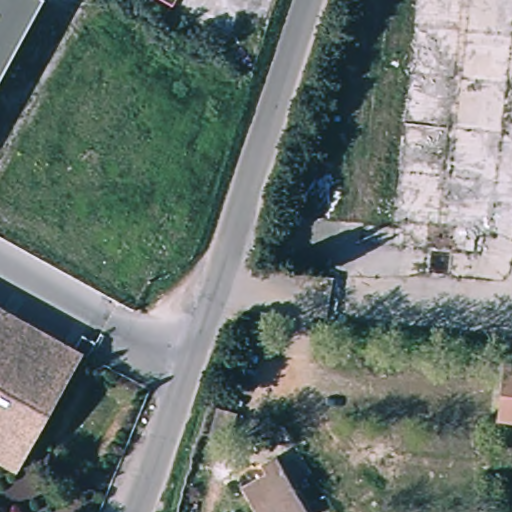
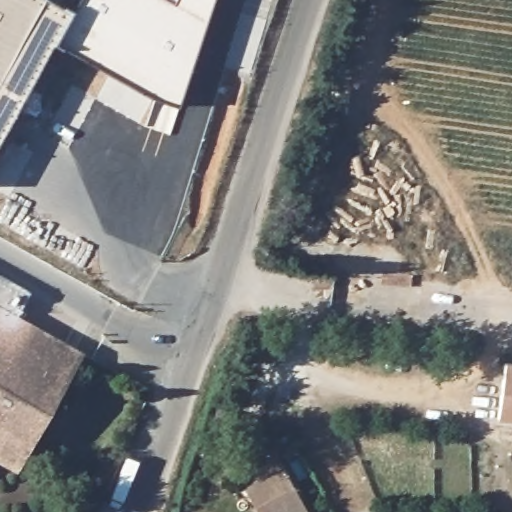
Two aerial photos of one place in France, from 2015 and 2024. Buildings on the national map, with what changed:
unchanged [(0,76),(0,0),(41,0),(0,76)]
new [(153,97),(56,43),(0,142),(0,76),(41,0),(56,0),(74,10),(80,0),(179,0),(181,1),(182,0),(214,0),(179,105),(153,97)]
unchanged [(181,1),(179,0),(182,0),(181,1)]
unchanged [(0,445),(0,306),(58,338),(0,445)]
unchanged [(512,365),(512,424),(495,422),(503,363),(512,365)]
unchanged [(257,512),(245,485),(266,474),(261,461),(283,451),(307,512),(257,512)]

